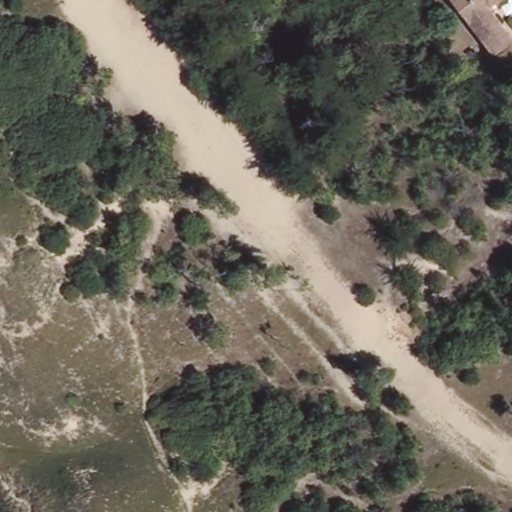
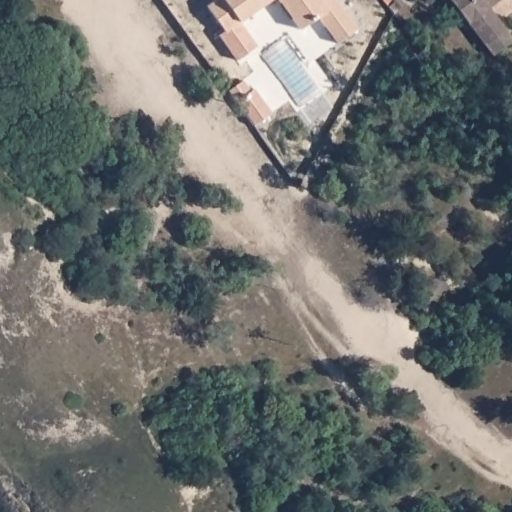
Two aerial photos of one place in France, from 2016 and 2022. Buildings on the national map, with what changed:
new [(256,45),(237,60),(220,35),(226,31),(208,5),(215,0),(267,0),(241,21),(256,45)]
new [(338,41),(318,13),(300,28),(279,0),(337,0),(356,28),(338,41)]
unchanged [(512,37),(512,43),(492,58),(462,19),(449,0),(503,0),(491,10),(512,37)]

